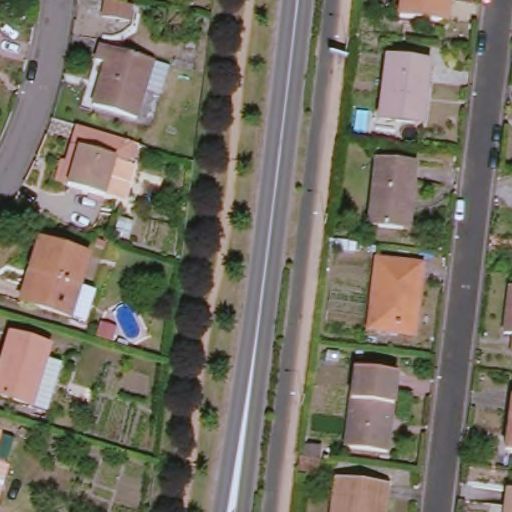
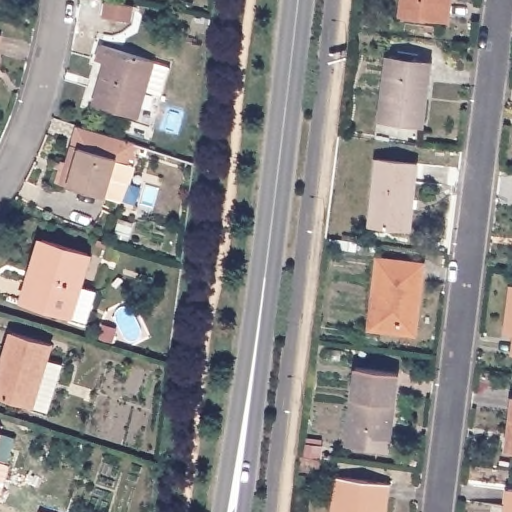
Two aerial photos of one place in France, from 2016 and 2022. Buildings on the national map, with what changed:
unchanged [(446,22),(440,21),(398,16),(400,0),(449,0),(446,22)]
unchanged [(110,5),(134,9),(132,24),(105,20),(106,5),(110,5)]
unchanged [(1,57),(0,57),(0,38),(5,39),(1,57)]
unchanged [(89,104),(95,89),(98,90),(105,64),(93,60),(97,45),(165,65),(156,94),(140,89),(131,116),(89,104)]
unchanged [(387,60),(423,64),(430,65),(427,91),(423,91),(420,124),(380,119),(387,60)]
unchanged [(68,164),(73,145),(77,146),(81,128),(135,145),(118,200),(105,195),(68,185),(68,183),(63,181),(68,164)]
unchanged [(400,227),(370,224),(377,161),(414,165),(408,200),(406,228),(400,227)]
unchanged [(20,300),(37,240),(82,254),(74,283),(88,287),(79,318),(65,314),(20,300)]
unchanged [(368,329),(376,260),(421,265),(413,334),(368,329)]
unchanged [(30,406),(0,397),(0,368),(0,366),(0,358),(8,331),(48,343),(44,358),(60,363),(45,411),(30,406)]
unchanged [(345,446),(354,370),(396,375),(390,425),(387,425),(384,451),(345,446)]
unchanged [(508,439),(512,412),(512,451),(511,451),(507,450),(508,439)]
unchanged [(316,458),(315,473),(294,470),(296,456),(316,458)]
unchanged [(384,512),(333,512),(337,478),(387,485),(384,512)]
unchanged [(512,489),(512,512),(506,512),(509,489),(512,489)]

